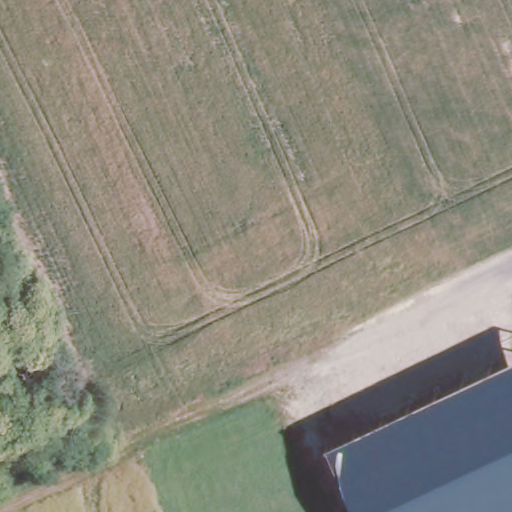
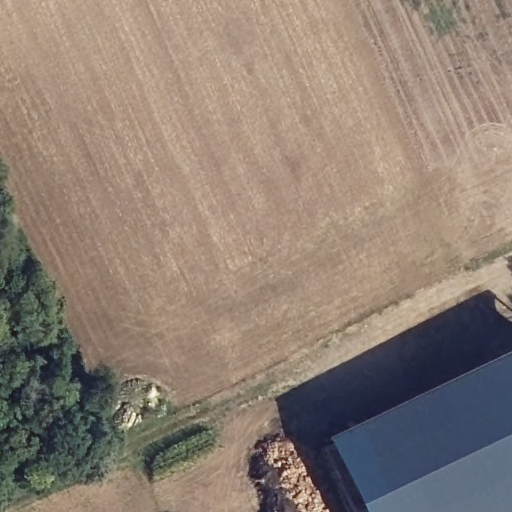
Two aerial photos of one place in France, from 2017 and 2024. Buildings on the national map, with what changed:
unchanged [(361,512),(329,443),(512,353),(512,512),(361,512)]

